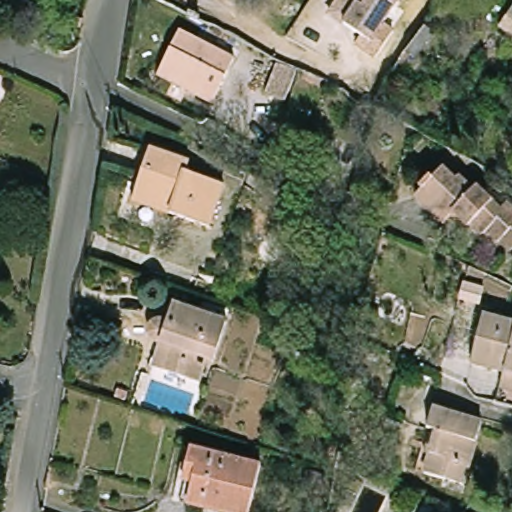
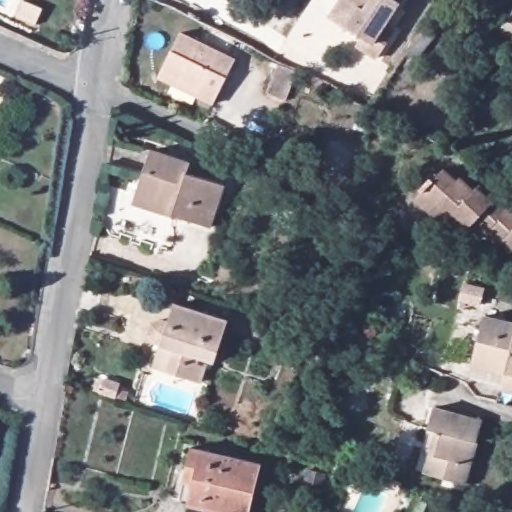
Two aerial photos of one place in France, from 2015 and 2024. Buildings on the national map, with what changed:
unchanged [(396,30),(379,57),(361,46),(366,37),(349,27),(334,19),(345,0),(399,0),(385,24),(396,30)]
unchanged [(507,32),(512,23),(512,35),(507,32)]
unchanged [(401,57),(418,29),(428,35),(410,63),(401,57)]
unchanged [(163,72),(164,69),(182,35),(234,62),(214,101),(212,106),(197,99),(159,80),(163,72)]
unchanged [(286,104),(268,97),(279,67),(299,75),(296,79),(286,104)]
unchanged [(138,194),(141,185),(151,152),(192,165),(188,175),(225,187),(211,229),(171,216),(135,205),(138,194)]
unchanged [(434,182),(437,184),(445,176),(445,175),(448,173),(454,179),(459,184),(459,185),(461,184),(462,182),(476,195),(477,194),(479,192),(480,191),(503,214),(505,211),(507,210),(508,208),(511,211),(512,212),(512,253),(503,244),(502,245),(501,246),(499,247),(489,236),(485,240),(476,229),(474,227),(469,231),(467,228),(457,217),(453,220),(446,227),(419,201),(427,195),(424,192),(434,182)]
unchanged [(161,344),(158,341),(155,337),(154,333),(156,328),(158,325),(161,322),(163,321),(168,320),(173,321),(178,306),(232,321),(220,362),(213,360),(206,383),(168,372),(159,370),(166,346),(161,344)]
unchanged [(479,364),(484,340),(490,316),(512,321),(512,371),(479,364)]
unchanged [(509,387),(512,375),(512,388),(509,387)]
unchanged [(432,431),(437,412),(484,426),(481,440),(474,461),(466,488),(428,478),(431,466),(433,460),(427,458),(433,435),(431,433),(432,431)]
unchanged [(193,496),(196,485),(188,482),(191,467),(192,465),(196,450),(263,468),(258,488),(253,503),(253,506),(251,512),(216,512),(191,505),(193,496)]
unchanged [(324,491),(308,486),(312,471),(328,476),(326,481),(324,491)]

